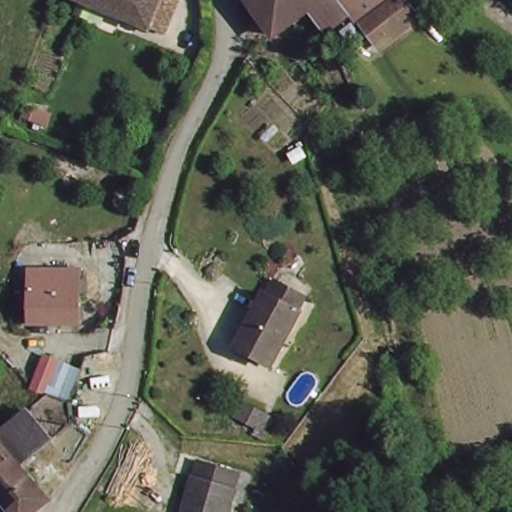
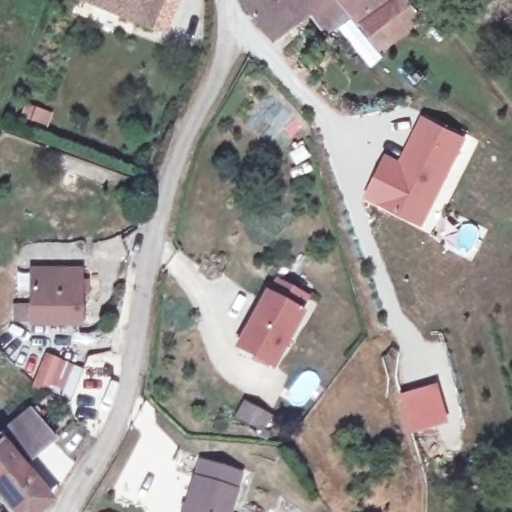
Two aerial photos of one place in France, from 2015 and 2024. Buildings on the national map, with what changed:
unchanged [(72,0),(156,0),(144,29),(106,14),(72,0)]
unchanged [(173,0),(165,20),(158,35),(144,29),(156,0),(173,0)]
unchanged [(370,19),(358,6),(345,17),(336,25),(320,6),(295,24),(283,32),(265,13),(263,11),(255,0),(393,0),(386,5),(370,19)]
new [(380,54),(348,15),(358,6),(370,19),(386,5),(393,0),(412,0),(425,17),(380,54)]
new [(398,160),(421,114),(465,137),(422,227),(363,198),(385,152),(398,160)]
demolished [(288,270),(322,283),(314,297),(285,282),(288,270)]
unchanged [(85,272),(84,325),(37,325),(37,272),(85,272)]
unchanged [(308,315),(275,368),(241,348),(274,295),(308,315)]
new [(32,385),(45,353),(83,368),(70,401),(45,390),(32,385)]
new [(436,382),(447,423),(407,433),(396,393),(436,382)]
unchanged [(8,435),(37,412),(40,410),(65,436),(32,463),(8,435)]
unchanged [(42,512),(32,512),(25,505),(20,500),(6,483),(0,488),(0,442),(8,435),(32,463),(36,468),(45,478),(60,495),(57,498),(42,512)]
unchanged [(202,458),(242,468),(232,509),(231,512),(188,512),(202,458)]

